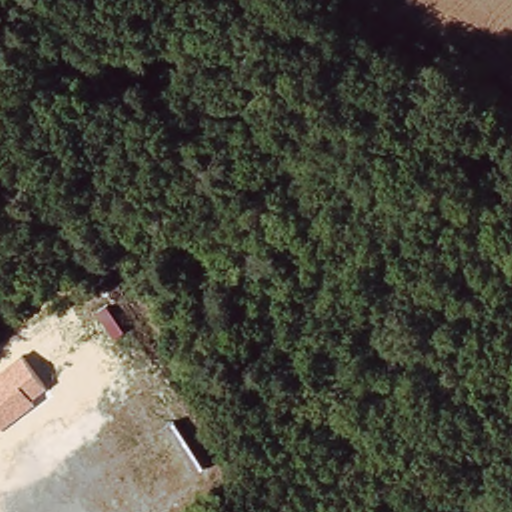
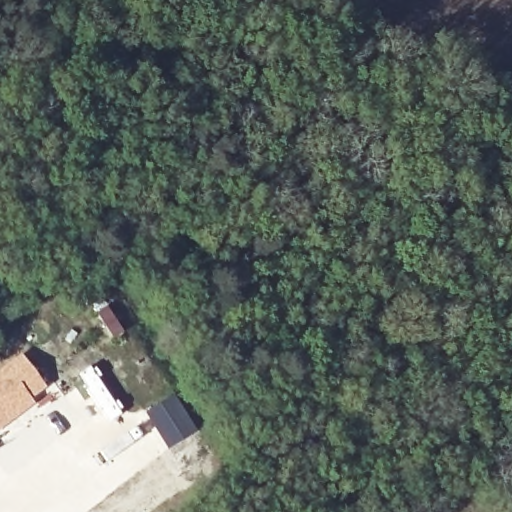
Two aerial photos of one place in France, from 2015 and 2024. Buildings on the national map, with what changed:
unchanged [(32,397),(34,400),(0,427),(0,369),(21,353),(46,386),(32,397)]
new [(197,431),(167,449),(145,412),(174,394),(197,431)]

